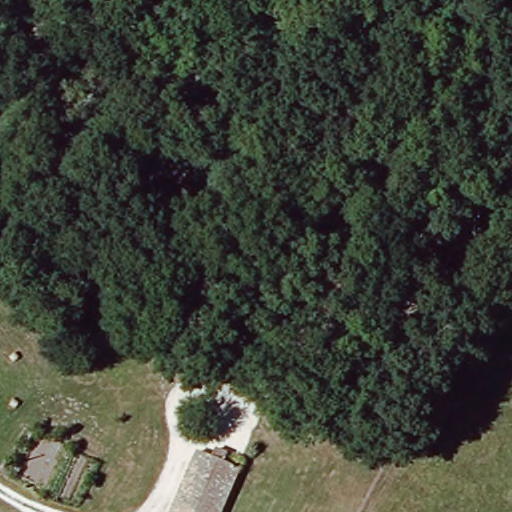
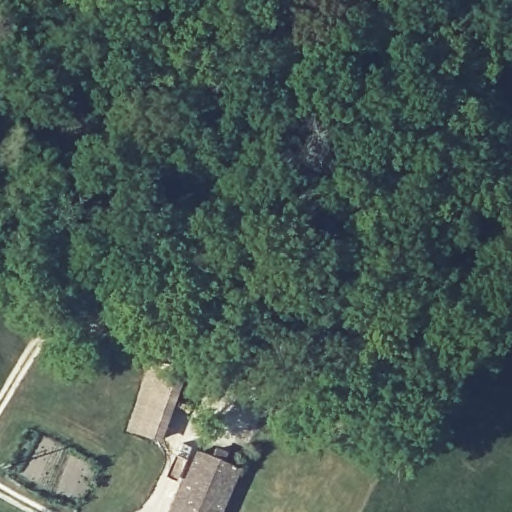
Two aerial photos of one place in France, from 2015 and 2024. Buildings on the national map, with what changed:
new [(143,379),(163,386),(160,392),(175,398),(158,445),(123,432),(143,379)]
unchanged [(203,456),(214,462),(218,456),(227,461),(224,466),(239,474),(221,512),(177,512),(203,456)]

